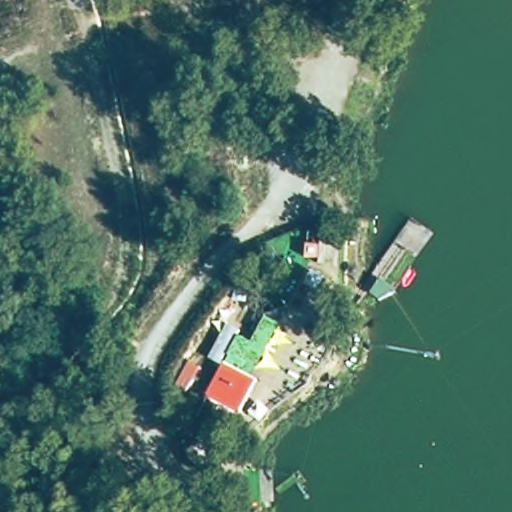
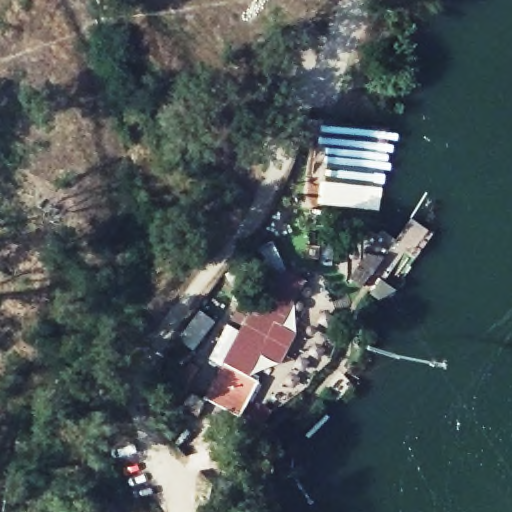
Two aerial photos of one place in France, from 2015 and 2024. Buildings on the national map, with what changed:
unchanged [(221,366),(209,360),(228,322),(242,330),(238,336),(252,343),(265,315),(282,324),(255,378),(259,382),(241,416),(206,400),(221,366)]

